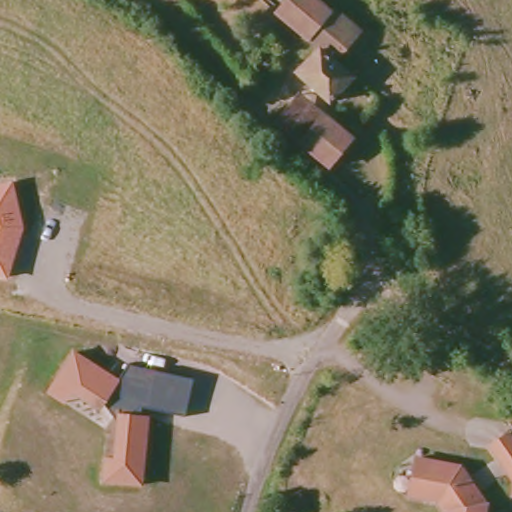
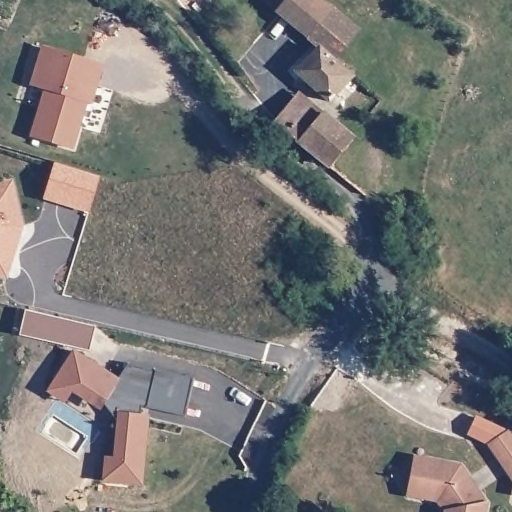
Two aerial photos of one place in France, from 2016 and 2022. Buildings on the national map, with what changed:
unchanged [(279,10),(286,0),(318,0),(326,6),(306,33),(279,10)]
unchanged [(351,26),(330,51),(354,71),(331,101),(293,70),(317,41),(306,33),(326,6),(351,26)]
new [(30,136),(43,89),(30,85),(41,45),(103,65),(91,104),(85,103),(73,149),(30,136)]
unchanged [(331,171),(273,123),(284,109),(295,95),(323,116),(355,142),(331,171)]
new [(47,196),(54,163),(100,176),(89,209),(47,196)]
unchanged [(25,226),(8,281),(0,278),(0,182),(13,178),(25,226)]
unchanged [(73,393),(65,405),(48,393),(74,349),(118,380),(99,411),(73,393)]
unchanged [(125,367),(194,379),(189,409),(146,404),(143,416),(119,415),(99,411),(115,386),(118,380),(125,367)]
unchanged [(103,482),(105,457),(114,458),(119,415),(149,417),(143,487),(103,482)]
unchanged [(511,433),(512,436),(512,477),(491,446),(511,433)]
unchanged [(486,502),(484,512),(444,512),(437,499),(416,496),(407,495),(412,477),(415,457),(459,464),(486,502)]

